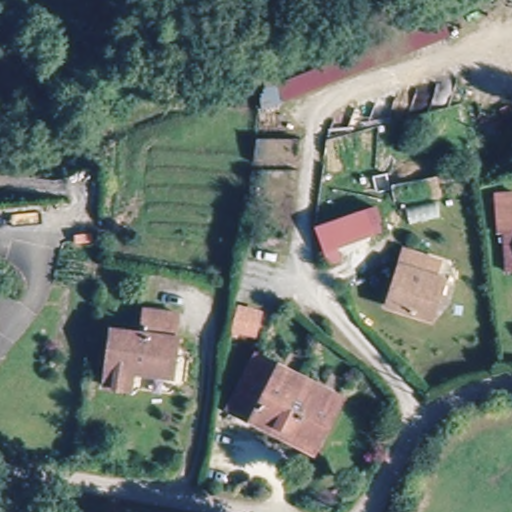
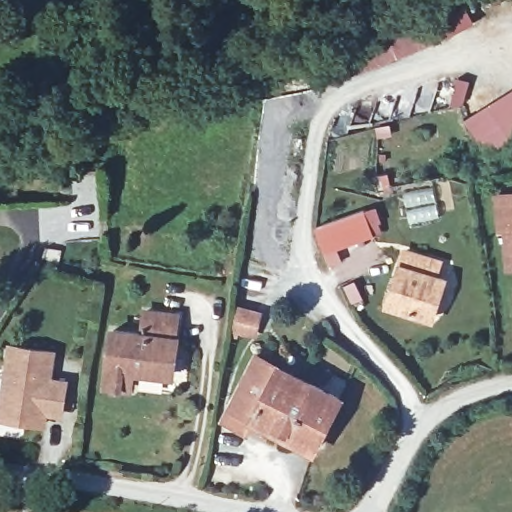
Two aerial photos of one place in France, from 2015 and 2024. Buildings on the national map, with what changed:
unchanged [(259,103),(265,89),(443,14),(451,34),(263,114),(259,103)]
new [(512,89),(512,143),(487,158),(463,123),(485,107),(512,89)]
unchanged [(504,273),(504,230),(501,193),(512,193),(512,273),(504,273)]
unchanged [(366,209),(376,235),(339,250),(343,259),(331,265),(316,229),(366,209)]
unchanged [(410,247),(442,264),(435,278),(443,283),(423,319),(383,298),(410,247)]
unchanged [(174,324),(166,384),(133,380),(131,394),(111,391),(118,338),(143,341),(146,320),(174,324)]
new [(58,350),(54,378),(69,379),(64,419),(49,417),(47,427),(0,420),(0,396),(8,343),(58,350)]
unchanged [(260,362),(281,373),(255,419),(249,416),(233,406),(245,385),(260,362)]
unchanged [(281,373),(340,407),(326,431),(318,427),(309,442),(276,423),(272,429),(255,419),(281,373)]

